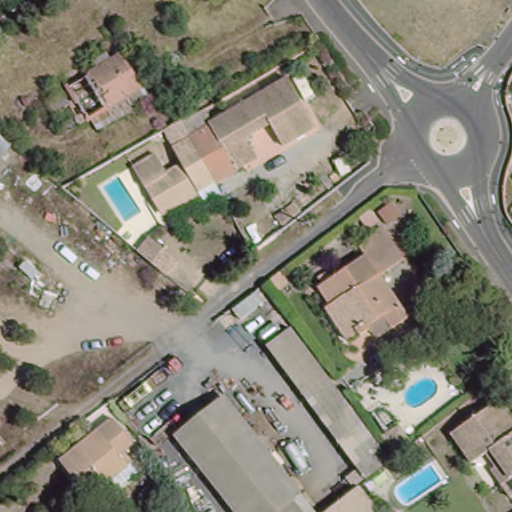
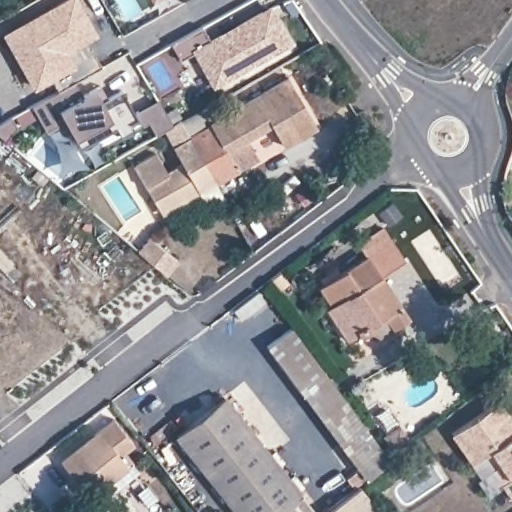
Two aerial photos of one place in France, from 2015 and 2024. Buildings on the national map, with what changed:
new [(56,0),(81,0),(98,33),(70,50),(76,63),(33,88),(1,31),(56,0)]
unchanged [(41,1),(41,0),(43,0),(41,1)]
new [(203,26),(211,42),(270,9),(288,43),(214,84),(196,51),(181,60),(171,44),(203,26)]
demolished [(54,100),(68,91),(126,59),(143,88),(87,121),(77,105),(61,113),(54,100)]
new [(77,138),(66,119),(47,130),(33,104),(76,79),(85,94),(95,89),(102,85),(110,98),(123,91),(136,113),(159,99),(175,125),(157,134),(150,121),(143,125),(140,118),(133,123),(136,129),(123,136),(118,127),(100,137),(82,147),(77,138)]
unchanged [(322,126),(290,145),(275,125),(230,151),(216,127),(294,82),(322,126)]
new [(0,122),(10,116),(16,126),(5,139),(0,135),(0,122)]
unchanged [(216,127),(230,151),(238,169),(215,182),(191,142),(216,127)]
unchanged [(165,210),(149,183),(188,165),(180,148),(191,142),(215,182),(165,210)]
demolished [(70,179),(81,190),(105,211),(93,220),(54,188),(70,179)]
unchanged [(150,238),(178,261),(166,275),(138,251),(150,238)]
unchanged [(403,265),(378,283),(409,326),(390,339),(381,326),(359,341),(321,289),(387,242),(403,265)]
unchanged [(265,345),(294,329),(394,458),(367,481),(265,345)]
unchanged [(323,512),(241,512),(178,433),(231,391),(323,512)]
unchanged [(497,400),(512,420),(512,496),(502,482),(502,473),(483,453),(473,462),(451,436),(497,400)]
unchanged [(116,416),(136,443),(130,448),(141,462),(95,498),(65,456),(116,416)]

